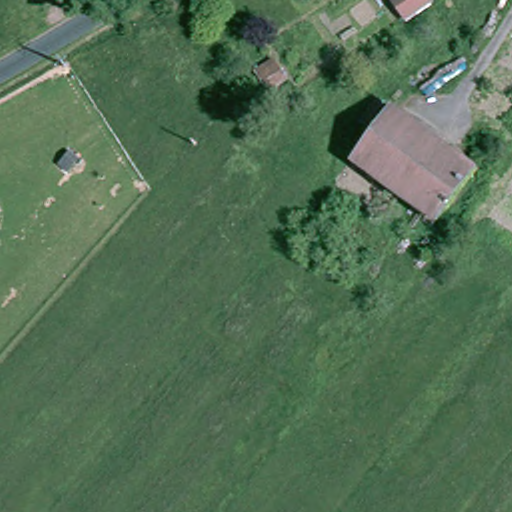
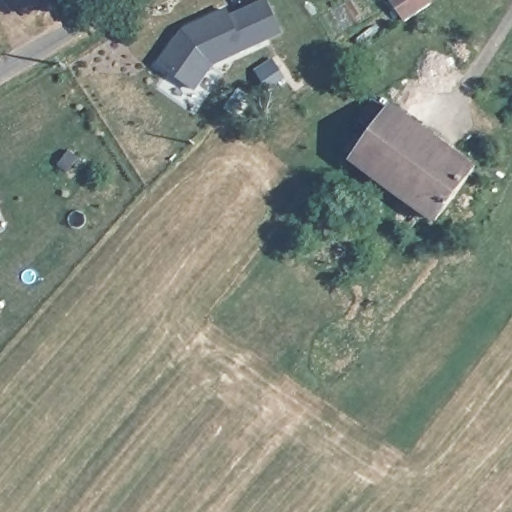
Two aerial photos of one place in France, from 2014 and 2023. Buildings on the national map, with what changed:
new [(195,31),(192,25),(226,10),(230,16),(247,8),(266,0),(280,31),(262,40),(210,63),(191,89),(157,64),(175,39),(195,31)]
unchanged [(394,0),(430,0),(405,16),(394,0)]
unchanged [(283,80),(265,91),(253,73),(272,61),(283,80)]
unchanged [(377,129),(371,124),(366,121),(380,101),(383,104),(391,110),(393,106),(476,169),(437,222),(353,161),(377,129)]

